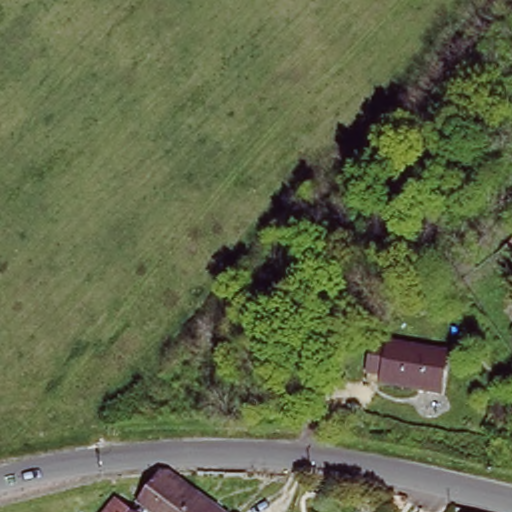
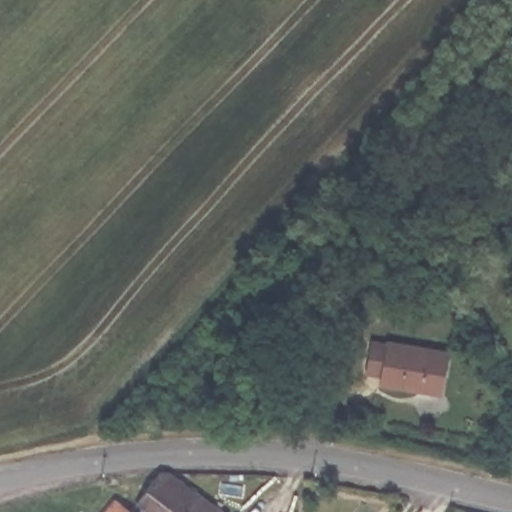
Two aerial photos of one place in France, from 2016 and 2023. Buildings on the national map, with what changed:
unchanged [(446,354),(438,393),(384,382),(387,370),(370,367),(375,340),(446,354)]
unchanged [(138,500),(167,467),(224,512),(154,512),(138,500)]
unchanged [(114,499),(130,512),(104,512),(114,499)]

